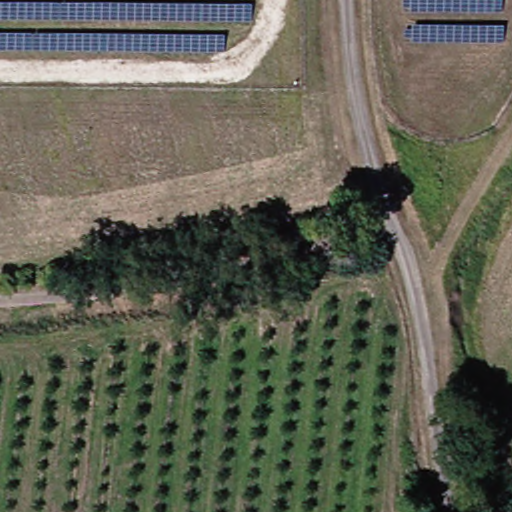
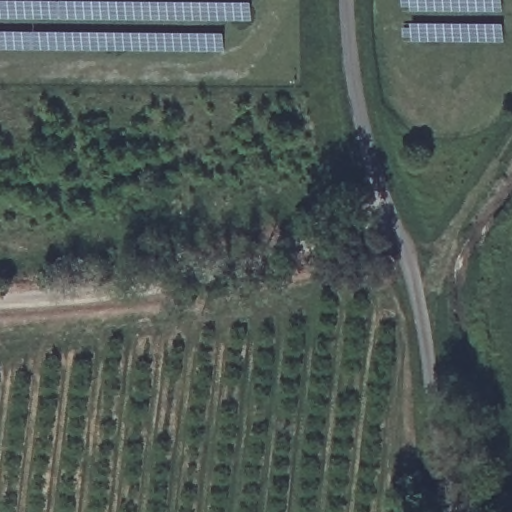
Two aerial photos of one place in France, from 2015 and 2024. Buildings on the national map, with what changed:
[]

